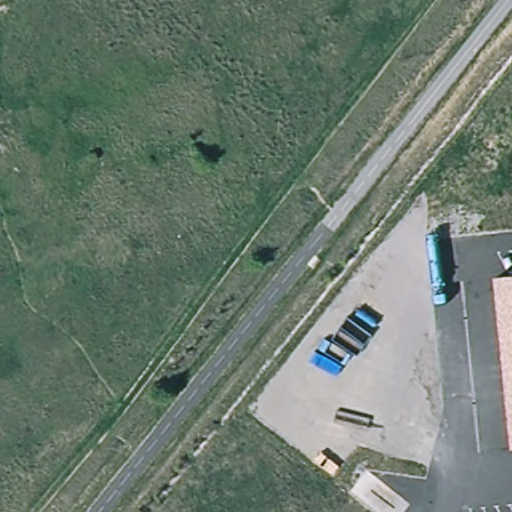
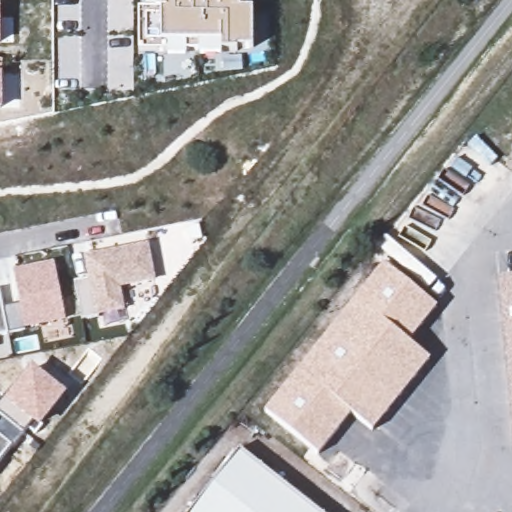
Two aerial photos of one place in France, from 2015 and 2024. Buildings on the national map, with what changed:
new [(144,0),(250,0),(252,48),(221,50),(221,55),(198,56),(198,50),(185,50),(185,56),(165,57),(165,50),(139,50),(138,9),(144,9),(144,0)]
new [(0,5),(2,45),(0,45),(0,5)]
new [(3,61),(2,75),(1,110),(0,110),(0,61),(3,61)]
new [(88,280),(84,257),(150,243),(156,281),(121,287),(125,311),(99,316),(99,318),(82,320),(75,282),(88,280)]
new [(55,262),(66,319),(10,332),(10,335),(0,337),(0,292),(4,307),(20,303),(13,270),(55,262)]
new [(384,263),(437,305),(409,340),(430,358),(373,430),(352,413),(319,454),(266,412),(384,263)]
unchanged [(512,276),(512,439),(496,277),(512,276)]
new [(8,399),(33,367),(66,395),(39,428),(32,422),(23,434),(0,464),(0,407),(8,399)]
new [(239,449),(317,512),(188,512),(239,449)]

